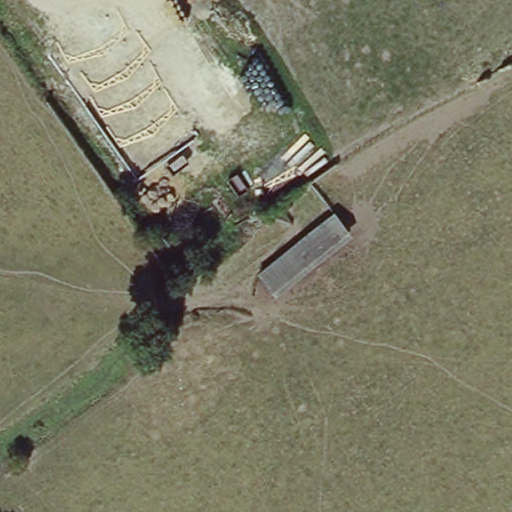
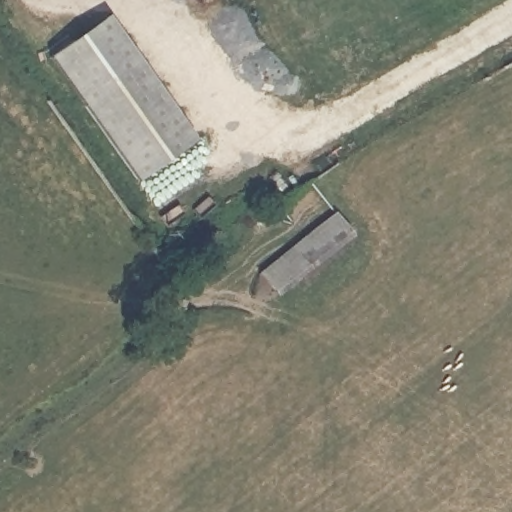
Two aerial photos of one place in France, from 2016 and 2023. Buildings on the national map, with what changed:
new [(50,56),(103,15),(192,137),(136,177),(50,56)]
unchanged [(358,242),(275,299),(256,271),(332,211),(358,242)]

